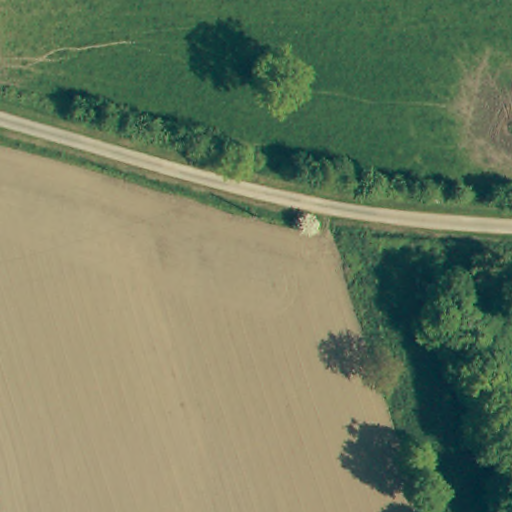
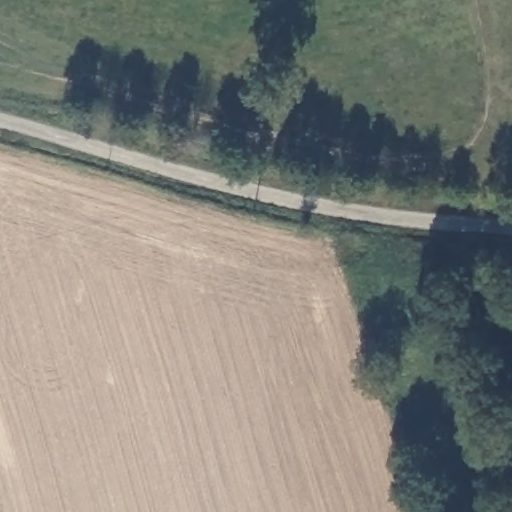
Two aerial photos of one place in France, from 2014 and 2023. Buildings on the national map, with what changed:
[]

